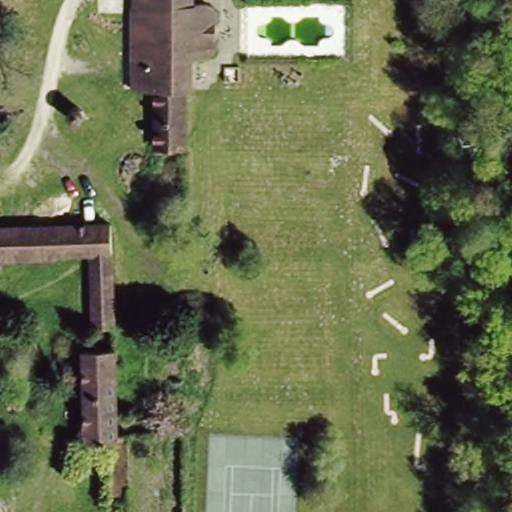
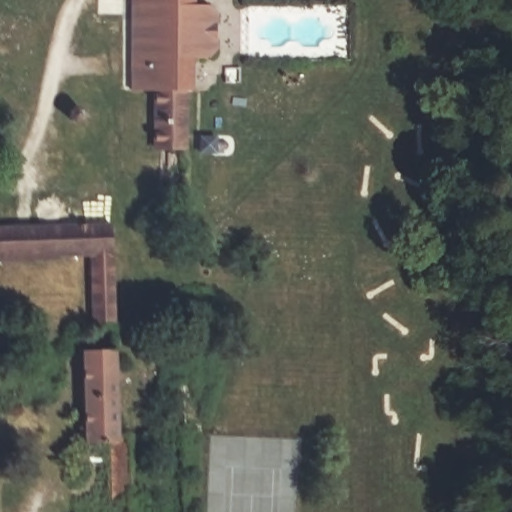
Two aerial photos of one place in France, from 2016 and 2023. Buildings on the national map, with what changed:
unchanged [(193,10),(193,69),(190,160),(153,159),(157,84),(133,84),(132,0),(194,0),(193,10)]
unchanged [(215,10),(215,68),(193,69),(193,10),(215,10)]
unchanged [(117,217),(117,329),(89,327),(91,254),(0,258),(0,220),(117,217)]
unchanged [(121,429),(130,429),(131,499),(104,497),(105,444),(77,444),(75,351),(117,349),(121,429)]

